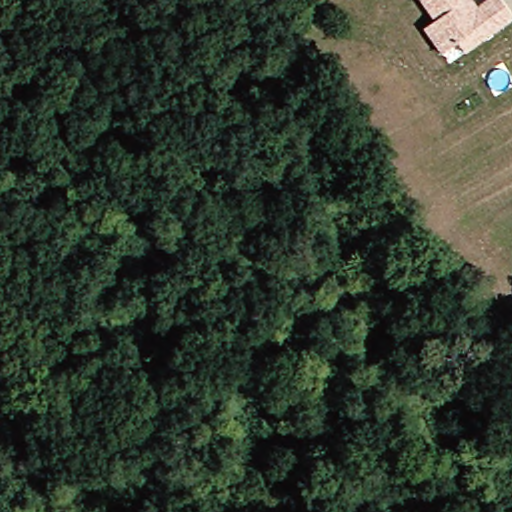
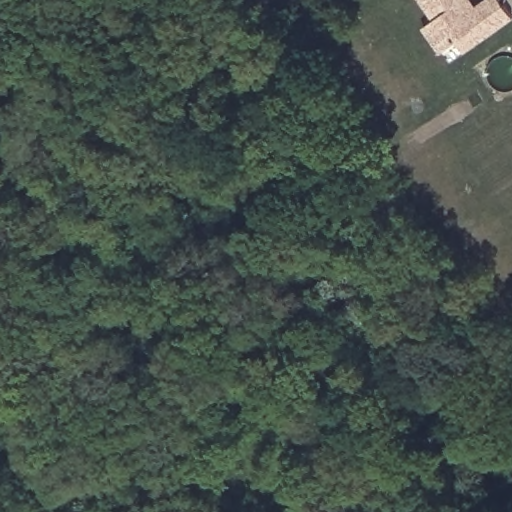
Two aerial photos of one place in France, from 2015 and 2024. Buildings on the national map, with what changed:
unchanged [(492,0),(506,21),(476,42),(468,30),(448,45),(434,54),(418,30),(430,22),(414,0),(464,0),(466,2),(461,5),(465,11),(470,7),(472,11),(486,0),(492,0)]

